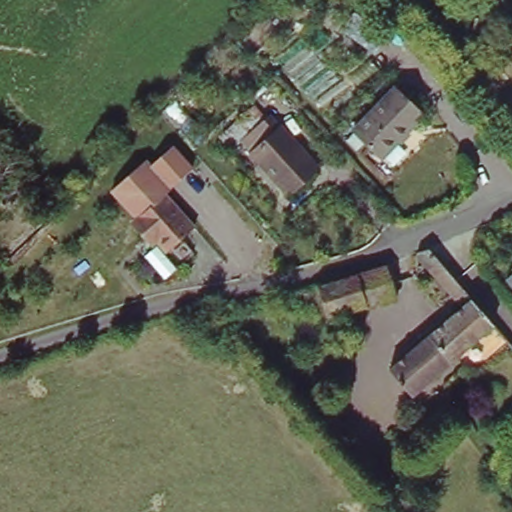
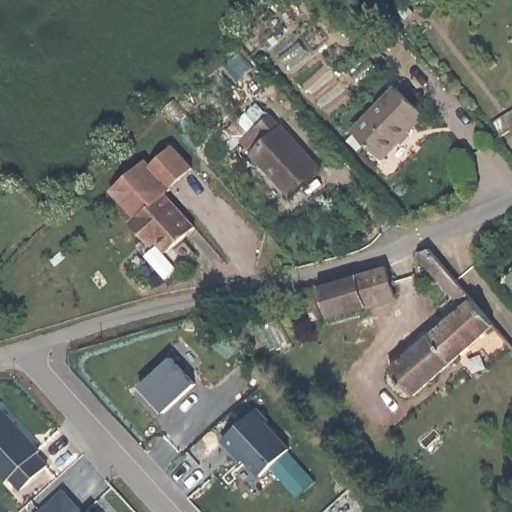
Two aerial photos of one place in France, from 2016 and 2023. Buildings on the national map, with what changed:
unchanged [(395,87),(423,116),(378,158),(352,130),(395,87)]
unchanged [(269,116),(315,166),(283,193),(240,143),(269,116)]
unchanged [(112,193),(147,161),(152,166),(177,146),(195,169),(169,193),(134,222),(112,193)]
unchanged [(149,237),(134,222),(169,193),(198,225),(170,250),(161,240),(155,245),(149,237)]
unchanged [(390,372),(460,308),(419,260),(420,253),(430,250),(488,316),(495,323),(411,397),(390,372)]
unchanged [(360,275),(387,267),(396,297),(370,305),(330,318),(320,288),(360,275)]
unchanged [(512,278),(507,272),(512,268),(512,278)]
new [(171,357),(196,383),(162,414),(138,387),(171,357)]
demolished [(308,405),(321,394),(344,420),(332,431),(308,405)]
new [(41,448),(37,452),(48,465),(20,491),(9,479),(5,482),(0,476),(0,409),(2,407),(41,448)]
new [(271,420),(268,423),(291,447),(260,476),(244,459),(240,462),(221,440),(259,407),(271,420)]
new [(66,488),(88,512),(39,512),(66,488)]
new [(96,507),(100,512),(90,512),(96,507)]

